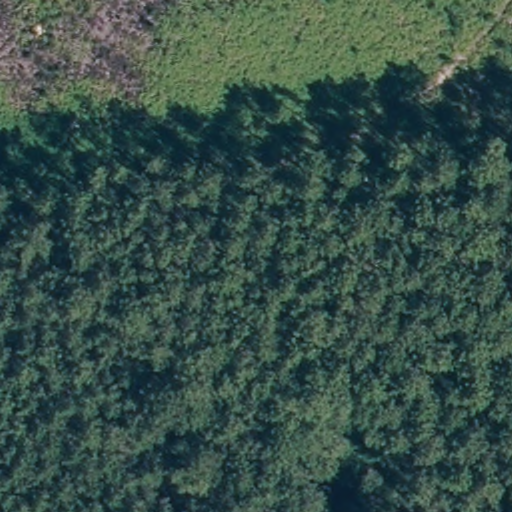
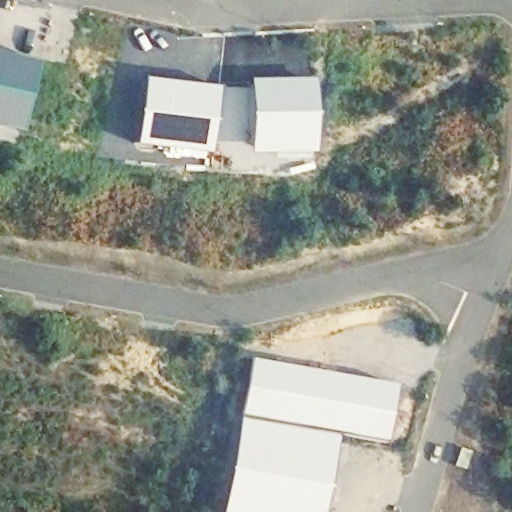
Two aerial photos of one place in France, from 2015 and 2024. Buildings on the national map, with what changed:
new [(36,58),(19,130),(0,126),(0,48),(7,50),(36,58)]
new [(311,76),(312,152),(247,154),(246,77),(311,76)]
new [(141,77),(216,86),(207,152),(132,144),(141,77)]
new [(249,357),(392,383),(382,440),(334,431),(319,512),(218,512),(232,436),(249,357)]

